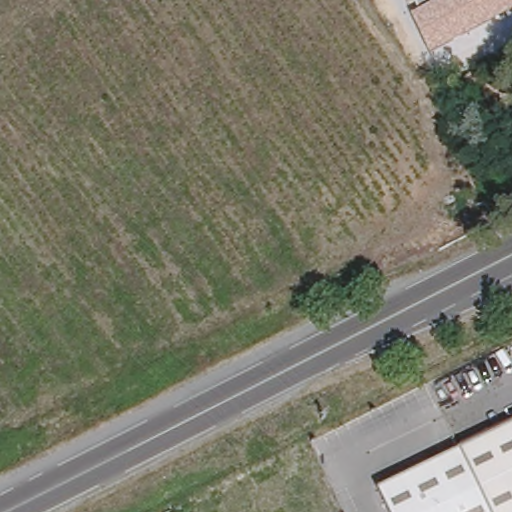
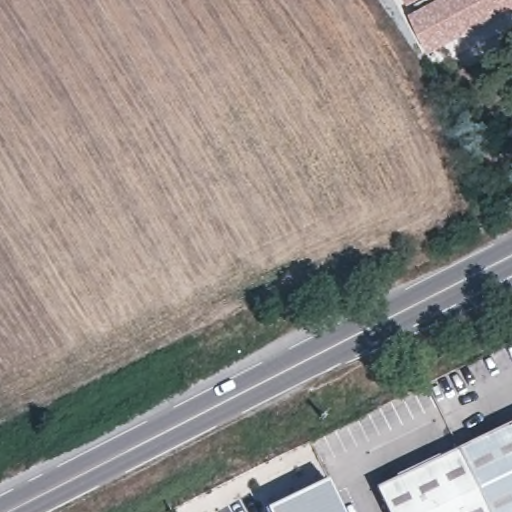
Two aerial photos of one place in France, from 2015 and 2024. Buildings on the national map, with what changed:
unchanged [(421,13),(415,2),(409,5),(406,0),(445,0),(421,13)]
unchanged [(512,12),(510,13),(433,54),(416,16),(445,0),(512,0),(512,12)]
unchanged [(463,442),(512,419),(512,512),(368,512),(358,491),(463,442)]
new [(344,512),(266,512),(265,508),(328,478),(344,512)]

